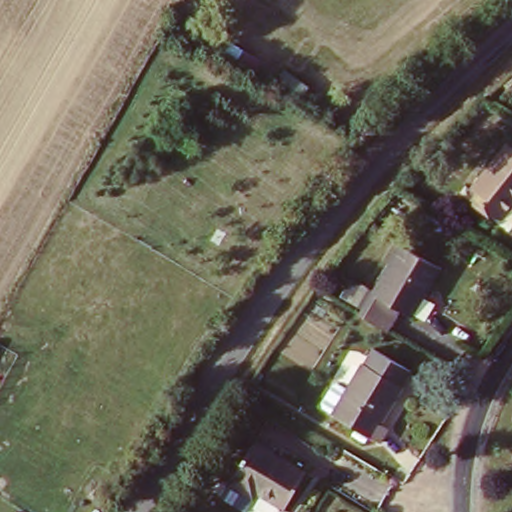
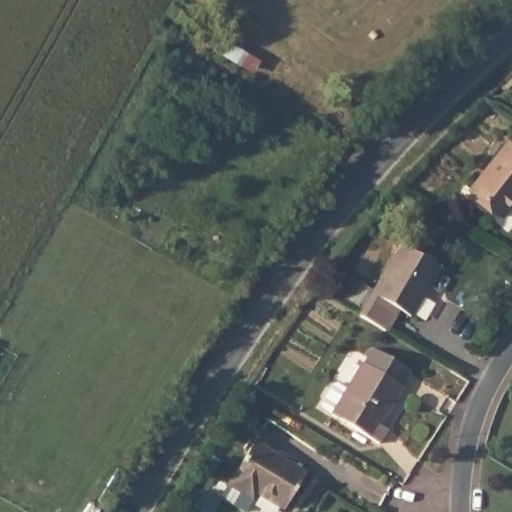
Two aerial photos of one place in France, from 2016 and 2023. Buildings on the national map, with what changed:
unchanged [(511,146),(512,147),(512,206),(503,216),(473,191),(511,146)]
unchanged [(335,299),(351,276),(375,292),(403,244),(442,265),(414,312),(402,306),(388,330),(361,314),(335,299)]
unchanged [(365,362),(366,363),(375,349),(410,372),(401,386),(401,387),(375,424),(385,431),(375,443),(332,413),(365,362)]
unchanged [(258,446),(308,476),(289,508),(256,487),(251,495),(232,484),(258,446)]

